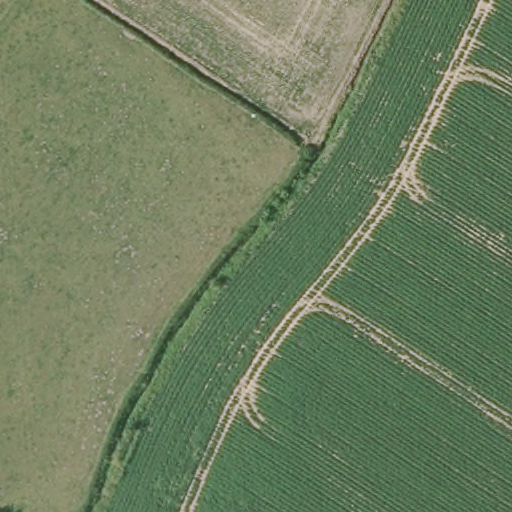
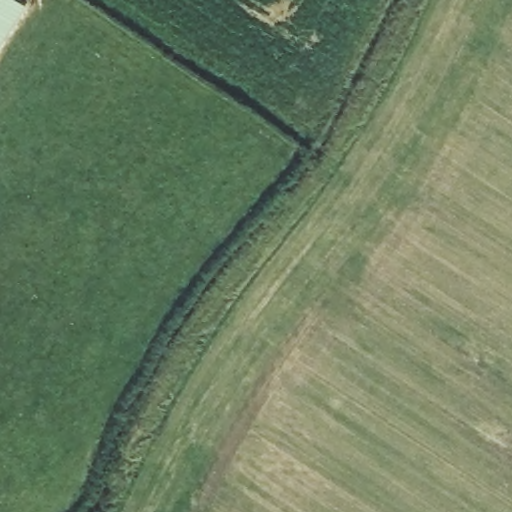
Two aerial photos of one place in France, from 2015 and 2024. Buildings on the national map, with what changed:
new [(0,0),(16,0),(29,7),(0,54),(0,0)]

